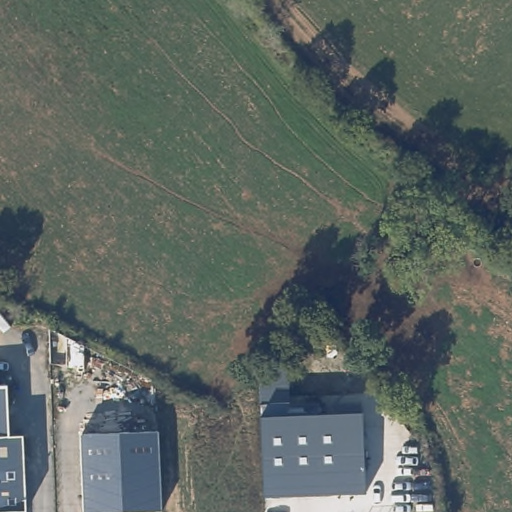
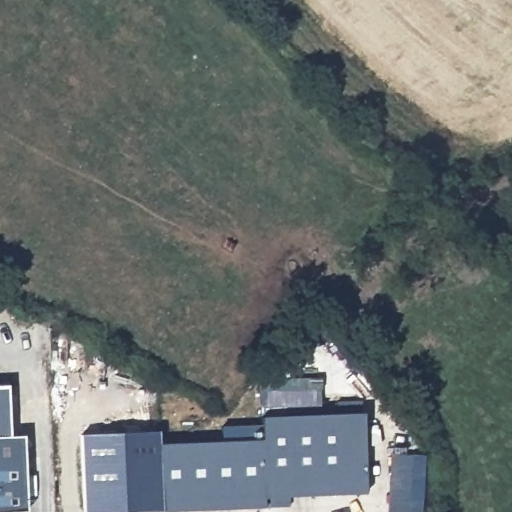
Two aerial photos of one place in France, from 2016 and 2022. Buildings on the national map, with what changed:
unchanged [(259,371),(288,368),(291,405),(320,402),(319,415),(363,412),(364,492),(262,497),(259,417),(259,371)]
unchanged [(6,386),(9,437),(0,437),(0,386),(6,386)]
new [(262,497),(265,497),(266,506),(161,511),(159,442),(221,440),(221,425),(259,423),(260,438),(262,497)]
unchanged [(159,433),(161,511),(130,512),(84,512),(80,436),(159,433)]
unchanged [(23,436),(25,512),(0,512),(0,437),(9,437),(23,436)]

